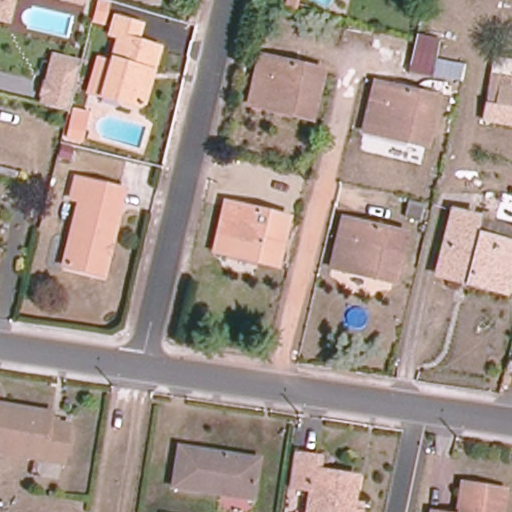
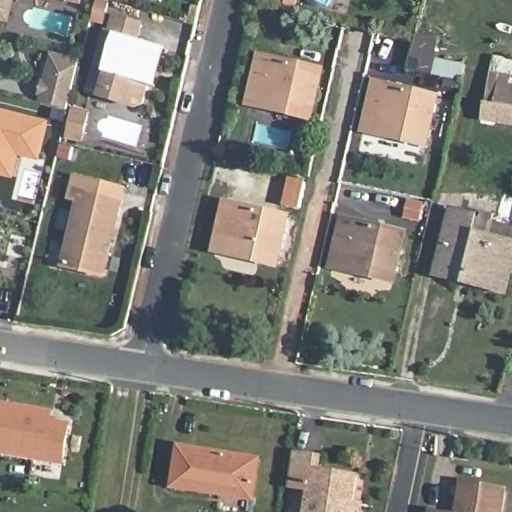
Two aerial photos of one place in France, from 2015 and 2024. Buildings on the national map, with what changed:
unchanged [(0,21),(0,0),(14,0),(8,23),(0,21)]
unchanged [(82,0),(81,4),(72,0),(82,0)]
unchanged [(160,48),(155,68),(147,66),(144,77),(152,79),(145,103),(139,106),(91,92),(100,60),(112,64),(120,36),(112,34),(117,18),(142,25),(138,41),(160,48)]
unchanged [(432,76),(410,73),(417,43),(418,36),(440,40),(432,76)]
unchanged [(67,110),(40,102),(51,52),(79,59),(67,110)]
unchanged [(268,109),(250,105),(262,56),(324,70),(312,119),(292,114),(293,110),(269,104),(268,109)]
unchanged [(487,104),(492,73),(512,76),(512,108),(487,104)]
unchanged [(383,135),(366,131),(377,83),(439,98),(427,146),(407,141),(408,136),(385,131),(383,135)]
new [(40,163),(20,158),(14,181),(0,177),(0,108),(51,121),(40,163)]
unchanged [(70,138),(76,110),(88,113),(82,140),(70,138)]
unchanged [(117,209),(121,209),(105,275),(65,266),(81,200),(72,199),(77,179),(121,189),(117,209)]
unchanged [(411,201),(425,204),(422,222),(407,219),(411,201)]
unchanged [(233,255),(216,251),(227,202),(289,217),(277,266),(257,261),(258,256),(234,250),(233,255)]
unchanged [(465,275),(463,282),(440,275),(456,212),(480,218),(479,219),(512,228),(512,272),(508,287),(465,275)]
unchanged [(351,272),(334,268),(345,219),(407,234),(395,282),(375,278),(376,273),(352,267),(351,272)]
unchanged [(51,422),(71,425),(65,464),(0,453),(0,404),(53,413),(51,422)]
unchanged [(260,459),(254,499),(174,487),(180,447),(260,459)]
unchanged [(311,491),(290,488),(295,454),(323,458),(321,470),(359,476),(356,501),(354,511),(363,512),(308,512),(311,491)]
unchanged [(464,484),(506,490),(503,512),(460,512),(464,484)]

